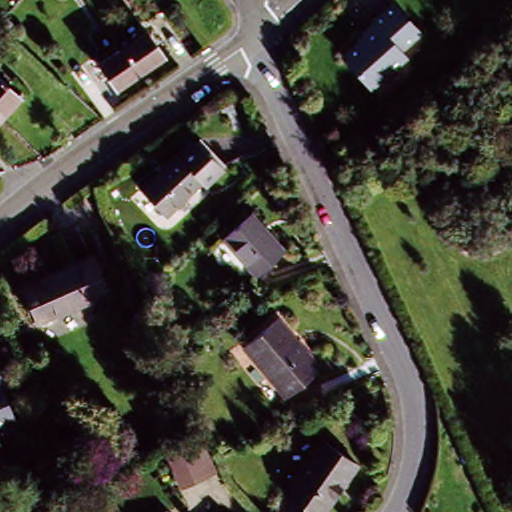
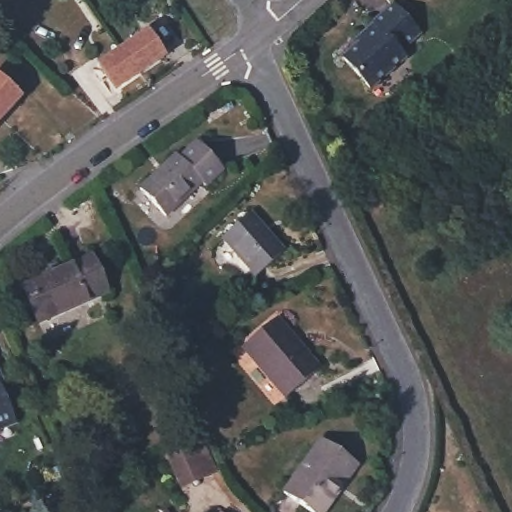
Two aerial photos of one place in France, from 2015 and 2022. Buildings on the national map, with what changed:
unchanged [(417,36),(396,54),(402,60),(366,90),(340,59),(358,44),(354,40),(371,26),(392,8),(417,36)]
unchanged [(95,66),(119,49),(143,33),(161,56),(136,74),(113,90),(95,66)]
unchanged [(15,98),(0,115),(0,83),(15,98)]
unchanged [(202,143),(226,171),(208,187),(205,183),(168,217),(141,187),(178,154),(183,159),(202,143)]
unchanged [(282,255),(253,280),(219,242),(248,218),(282,255)]
unchanged [(35,323),(20,290),(90,259),(104,291),(35,323)]
unchanged [(316,372),(284,401),(241,352),(274,323),(316,372)]
unchanged [(0,438),(0,360),(9,384),(6,384),(21,421),(2,429),(3,431),(5,437),(0,438)]
unchanged [(183,491),(165,453),(199,436),(216,473),(183,491)]
unchanged [(352,467),(322,512),(307,512),(283,496),(317,444),(352,467)]

